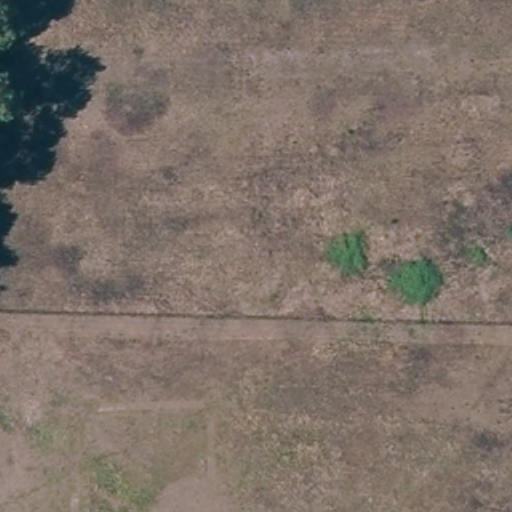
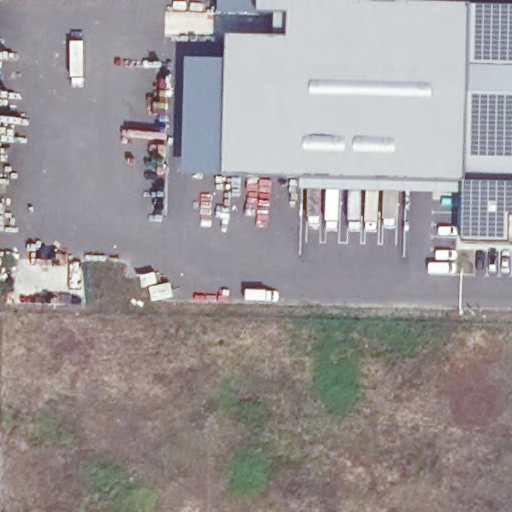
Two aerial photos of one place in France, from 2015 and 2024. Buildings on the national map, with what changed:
new [(219,0),(259,0),(259,13),(218,13),(219,0)]
new [(275,38),(277,14),(259,13),(259,0),(352,0),(472,5),(473,5),(512,7),(512,244),(510,244),(462,243),(465,182),(225,176),(230,37),(275,38)]
new [(229,61),(225,176),(184,175),(187,58),(229,61)]

